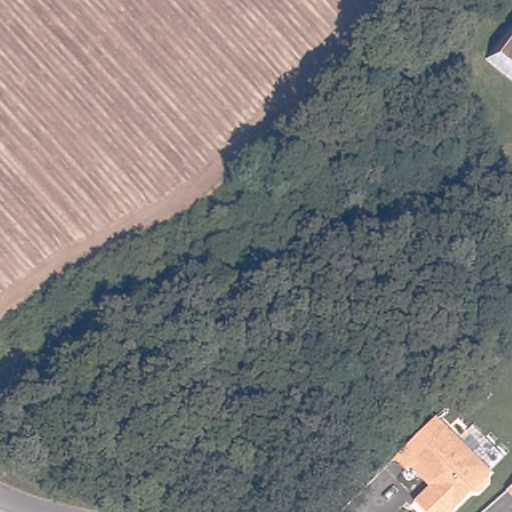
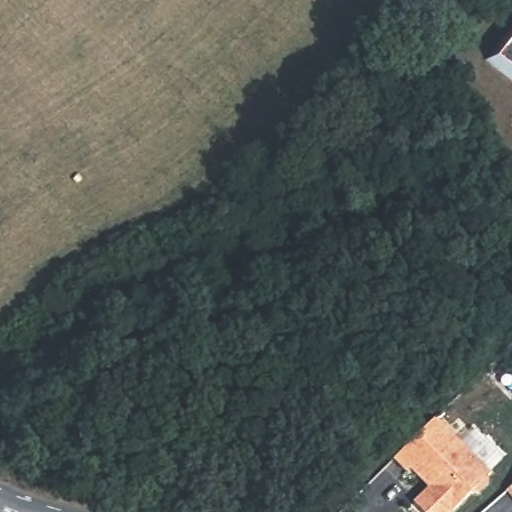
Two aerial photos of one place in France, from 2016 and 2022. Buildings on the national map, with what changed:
unchanged [(488,57),(512,25),(512,76),(488,57)]
unchanged [(492,474),(489,477),(489,484),(478,494),(471,494),(453,512),(424,512),(414,503),(434,483),(430,479),(421,479),(411,469),(407,472),(394,459),(408,446),(436,418),(492,474)]
unchanged [(507,486),(512,481),(512,492),(507,486)]

